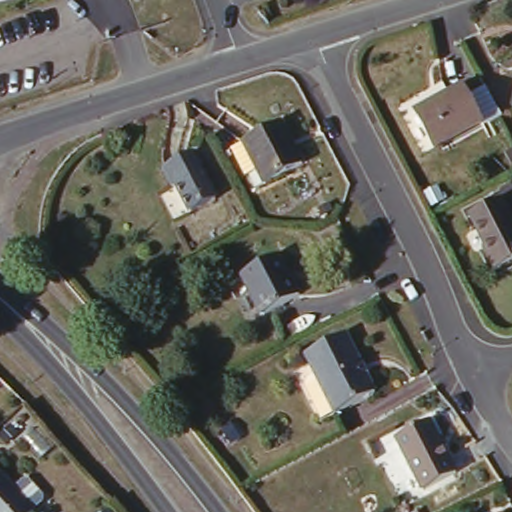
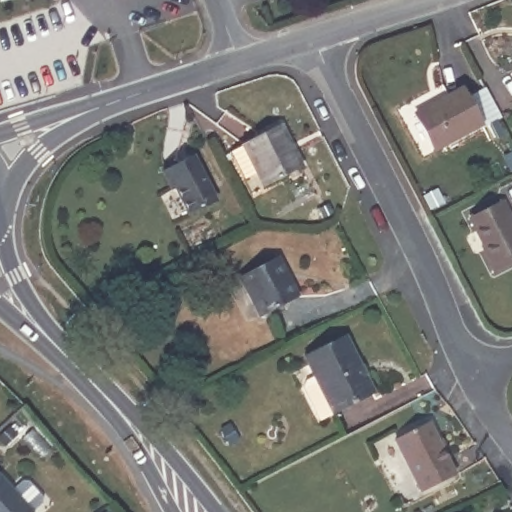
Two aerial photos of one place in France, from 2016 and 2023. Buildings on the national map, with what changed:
unchanged [(460,85),(479,122),(433,145),(414,108),(460,85)]
unchanged [(301,158),(265,178),(259,169),(245,176),(233,147),(283,120),(301,158)]
unchanged [(193,153),(217,201),(189,218),(160,170),(193,153)]
unchanged [(509,217),(505,220),(512,235),(512,265),(491,274),(482,253),(485,252),(467,219),(501,203),(509,217)]
unchanged [(277,258),(298,297),(261,317),(240,278),(277,258)]
unchanged [(375,387),(318,416),(300,378),(314,371),(305,352),(345,331),(375,387)]
unchanged [(427,417),(452,466),(421,483),(395,433),(427,417)]
unchanged [(35,508),(31,512),(0,512),(0,470),(35,508)]

